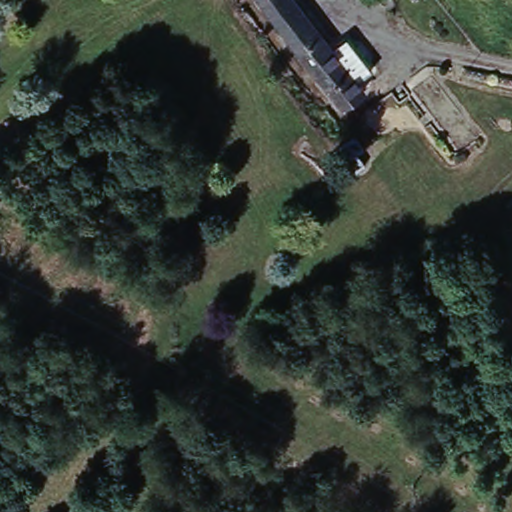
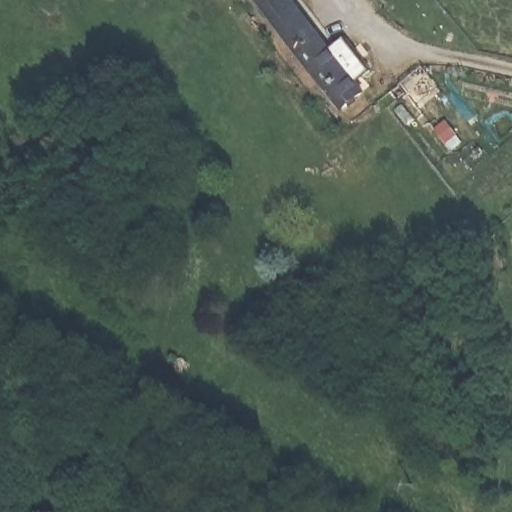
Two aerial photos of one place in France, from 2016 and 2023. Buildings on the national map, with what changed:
unchanged [(346,40),(373,71),(355,84),(361,90),(336,109),(253,5),(260,0),(289,0),(321,40),(330,51),(346,40)]

